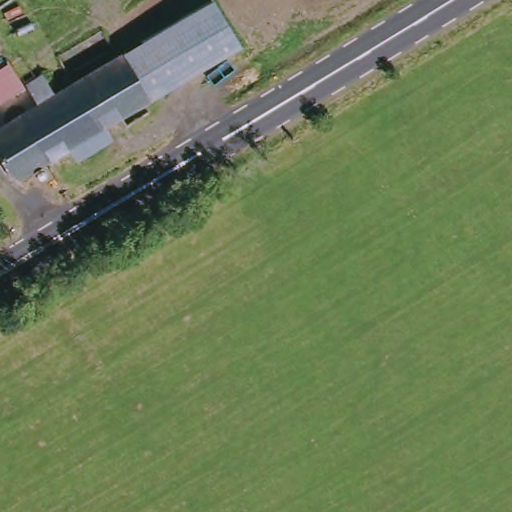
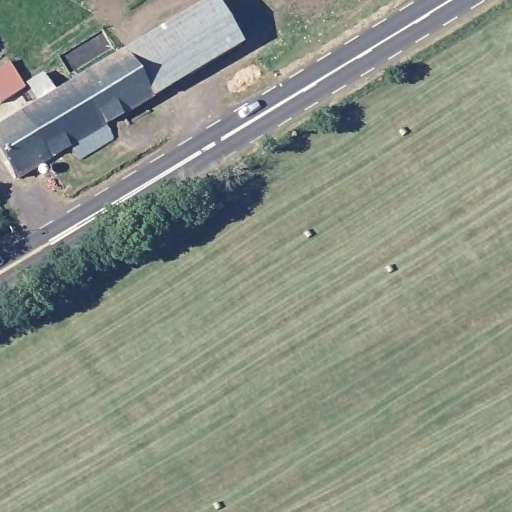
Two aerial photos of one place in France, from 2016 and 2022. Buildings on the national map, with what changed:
unchanged [(16,94),(49,75),(59,93),(216,0),(245,49),(111,122),(121,139),(85,159),(77,143),(20,177),(0,144),(0,128),(27,112),(16,94)]

